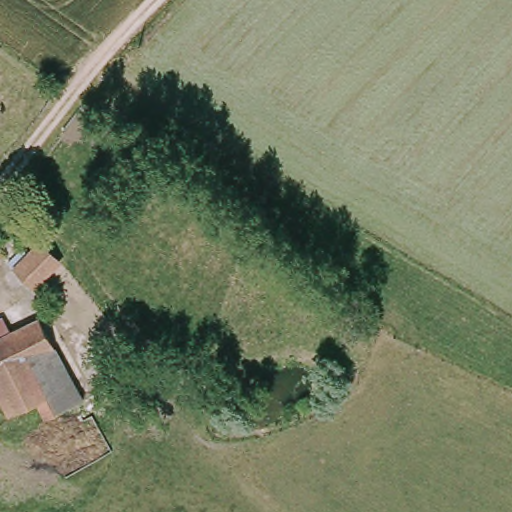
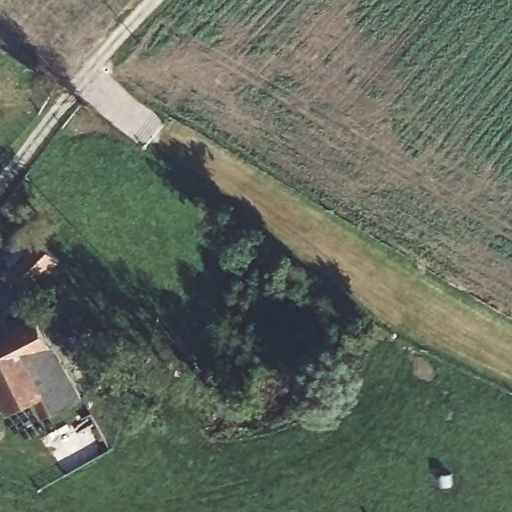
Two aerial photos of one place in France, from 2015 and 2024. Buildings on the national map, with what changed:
unchanged [(60,254),(33,281),(15,263),(40,236),(60,254)]
unchanged [(37,318),(55,353),(77,398),(48,412),(38,392),(9,407),(0,389),(0,315),(8,331),(37,318)]

